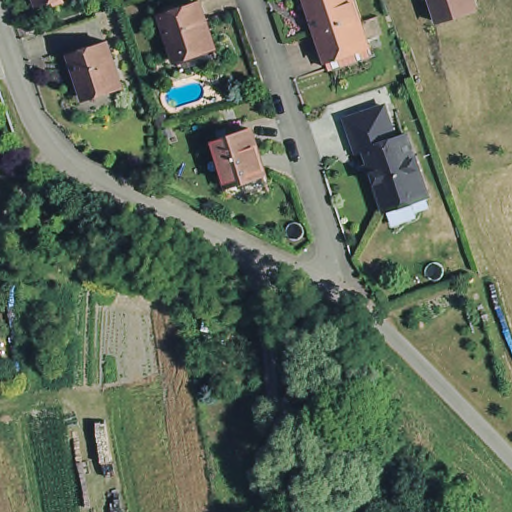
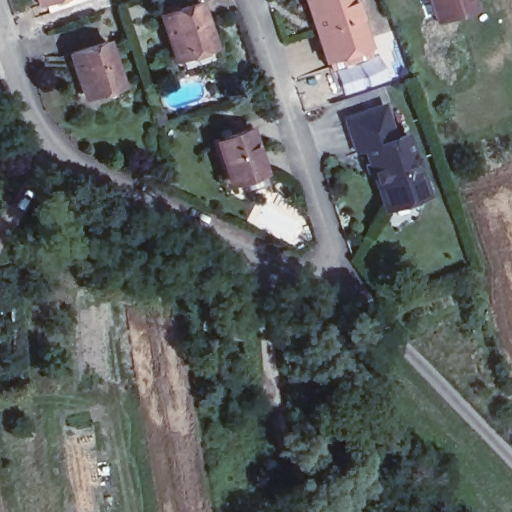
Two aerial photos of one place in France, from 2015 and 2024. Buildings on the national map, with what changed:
unchanged [(44,0),(51,0),(45,2),(44,0)]
unchanged [(177,53),(164,11),(200,0),(202,0),(216,40),(221,55),(181,67),(177,53)]
unchanged [(311,0),(357,0),(367,27),(373,46),(350,52),(329,57),(324,41),(311,0)]
unchanged [(443,21),(435,0),(473,0),(476,10),(443,21)]
unchanged [(109,37),(123,79),(85,89),(72,50),(109,37)]
unchanged [(352,114),(390,101),(400,134),(370,144),(370,145),(363,147),(352,114)]
unchanged [(249,130),(262,169),(227,181),(215,141),(249,130)]
unchanged [(391,206),(389,201),(370,145),(370,144),(400,134),(412,130),(428,177),(433,192),(391,206)]

